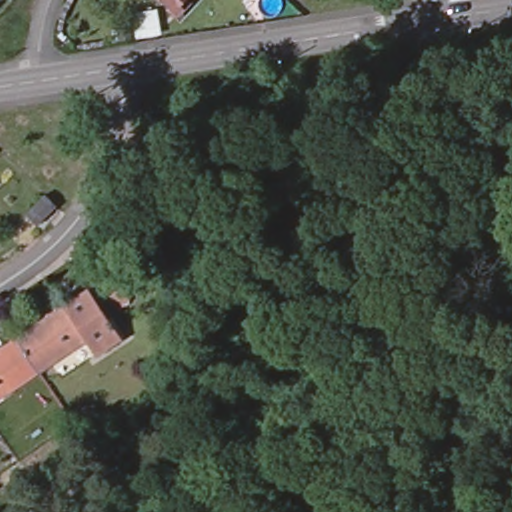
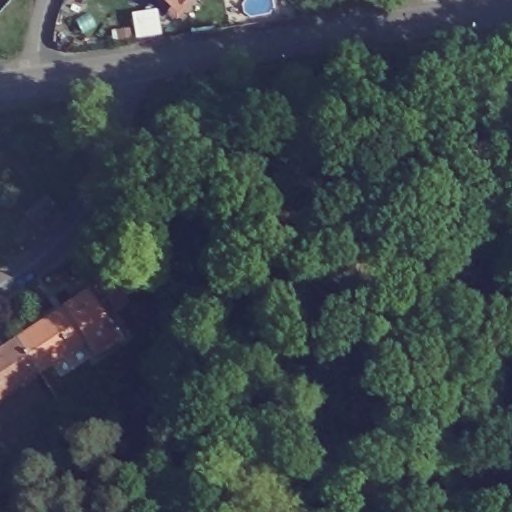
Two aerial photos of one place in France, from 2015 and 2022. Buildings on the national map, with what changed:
unchanged [(167,0),(182,0),(175,7),(167,0)]
unchanged [(112,273),(129,298),(115,307),(99,282),(112,273)]
unchanged [(18,327),(65,295),(69,301),(91,286),(128,341),(105,356),(90,333),(57,355),(44,365),(0,394),(0,347),(22,332),(18,327)]
unchanged [(105,356),(72,378),(57,355),(90,333),(105,356)]

